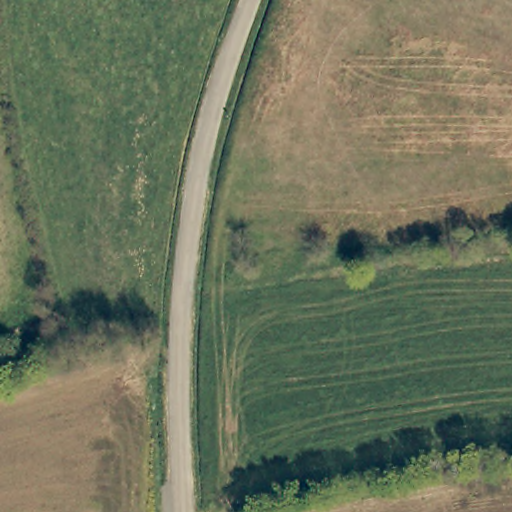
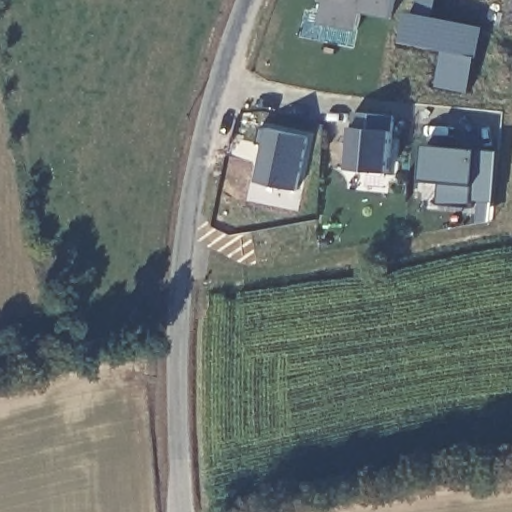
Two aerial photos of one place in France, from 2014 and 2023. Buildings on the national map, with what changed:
new [(393,19),(362,12),(359,31),(322,24),(326,0),(396,0),(393,19)]
new [(410,12),(417,14),(420,0),(439,0),(436,16),(486,27),(470,94),(438,86),(446,51),(403,43),(410,12)]
new [(350,170),(354,145),(348,145),(350,127),(354,127),(355,113),(394,115),(395,131),(390,172),(350,170)]
new [(298,191),(257,180),(265,145),(255,142),(260,126),(310,136),(298,191)]
new [(495,201),(473,200),(473,206),(442,205),(441,181),(426,180),(428,145),(480,150),(501,153),(495,201)]

